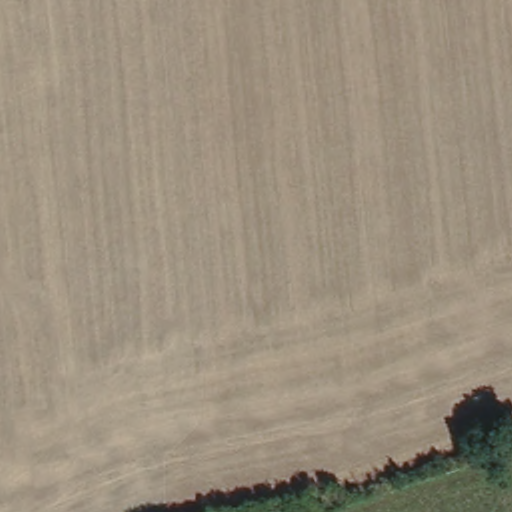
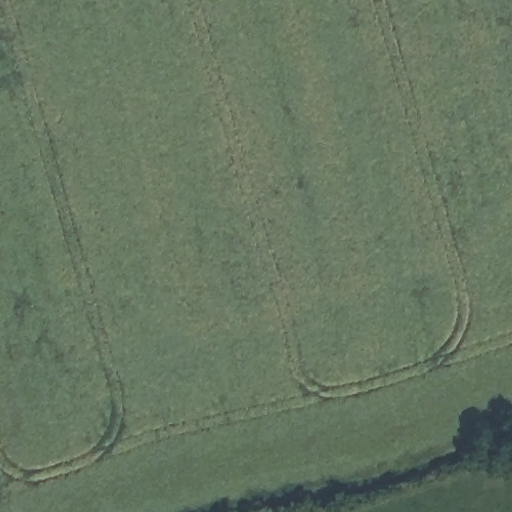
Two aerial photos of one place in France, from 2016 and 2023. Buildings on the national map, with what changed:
[]

